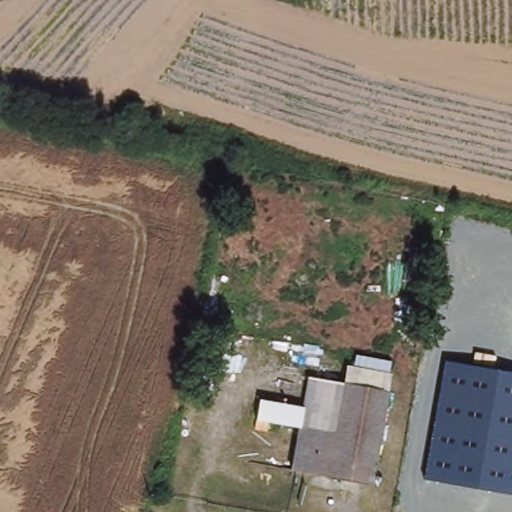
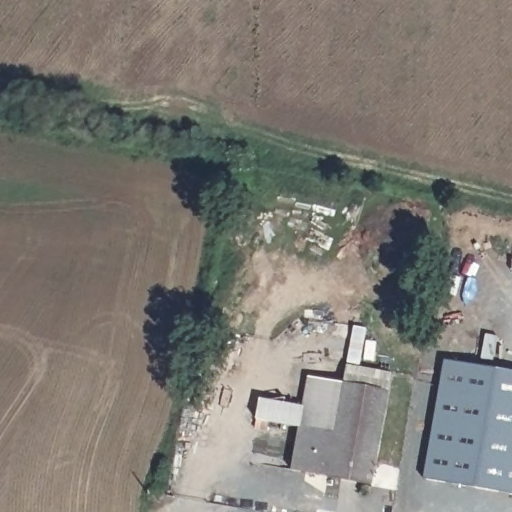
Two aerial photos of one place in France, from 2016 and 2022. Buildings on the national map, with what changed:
unchanged [(512,373),(512,495),(424,479),(444,361),(512,373)]
unchanged [(291,471),(300,425),(334,431),(344,379),(348,363),(391,371),(388,388),(370,486),(291,471)]
unchanged [(334,431),(300,425),(256,418),(259,400),(303,407),(308,376),(344,382),(334,431)]

